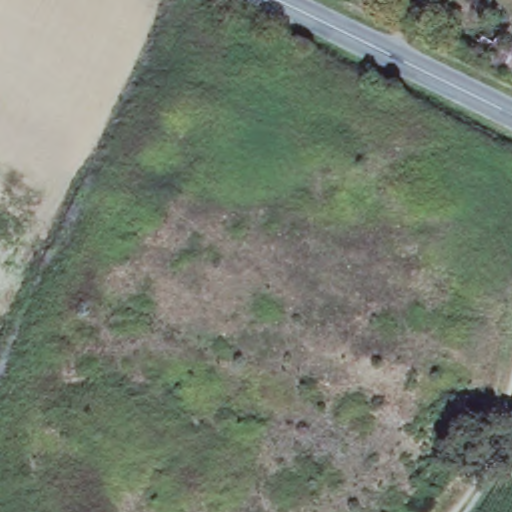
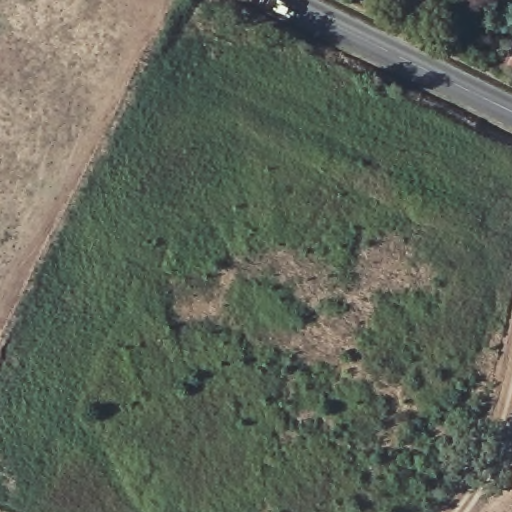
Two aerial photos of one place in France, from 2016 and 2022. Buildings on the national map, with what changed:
unchanged [(495,47),(481,40),(486,29),(498,36),(504,26),(512,31),(512,70),(489,58),(495,47)]

